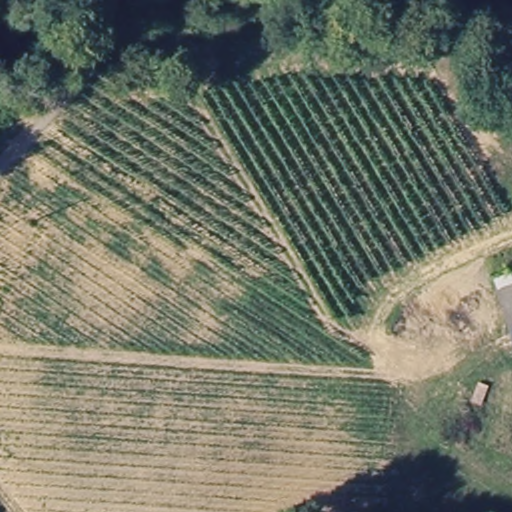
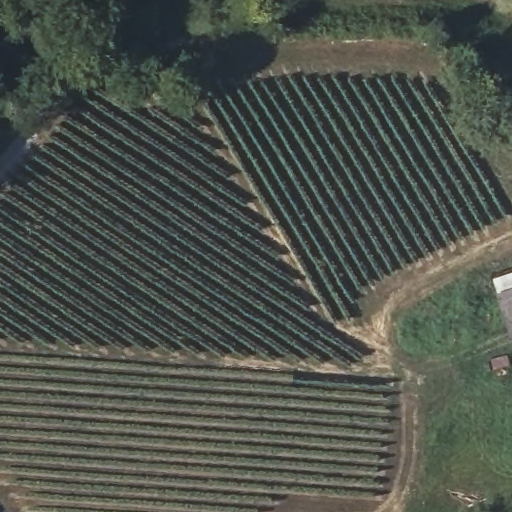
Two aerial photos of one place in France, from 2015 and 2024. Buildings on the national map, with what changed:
unchanged [(494,284),(512,278),(512,339),(507,322),(494,284)]

